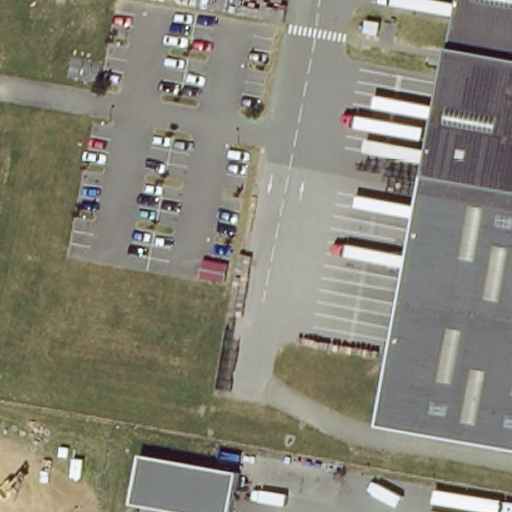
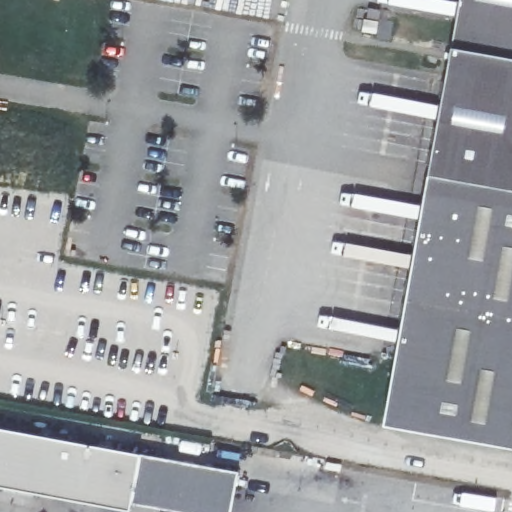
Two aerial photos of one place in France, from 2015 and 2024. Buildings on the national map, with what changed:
unchanged [(407,283),(415,237),(459,0),(512,0),(512,444),(382,420),(407,283)]
new [(142,454),(133,503),(130,511),(0,487),(0,428),(142,454)]
unchanged [(241,472),(233,512),(184,512),(133,503),(142,454),(241,472)]

